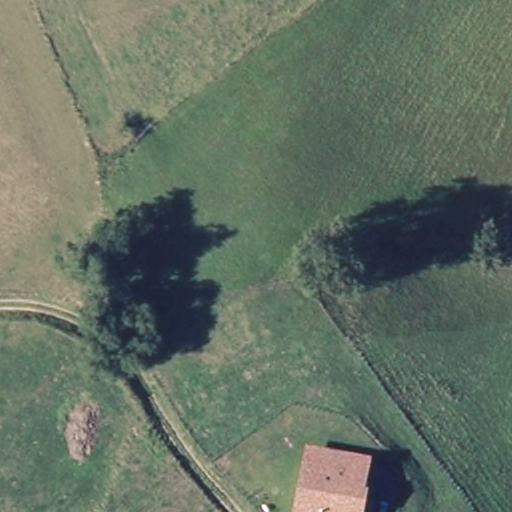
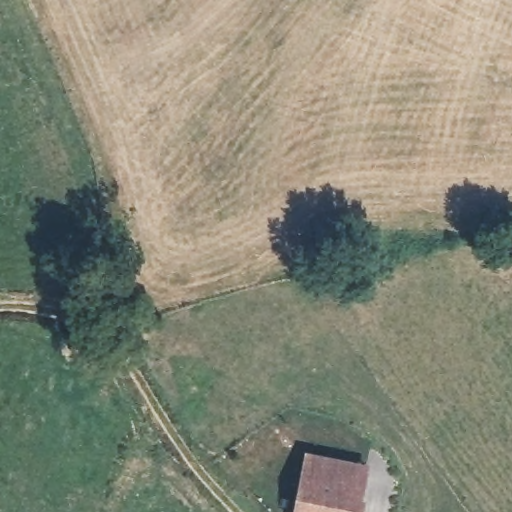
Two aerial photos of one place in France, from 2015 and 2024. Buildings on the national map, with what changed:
unchanged [(307,455),(366,466),(363,481),(358,512),(298,512),(304,470),(307,455)]

